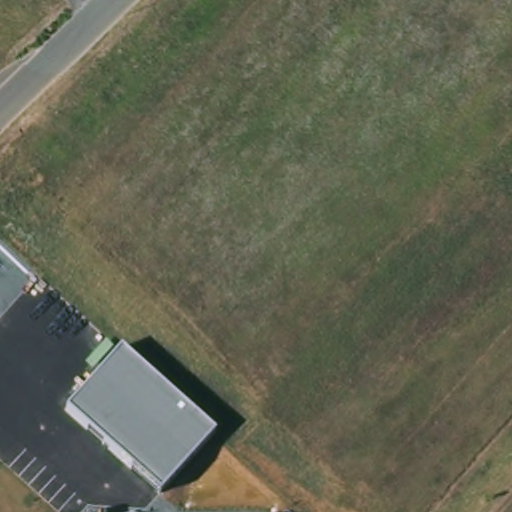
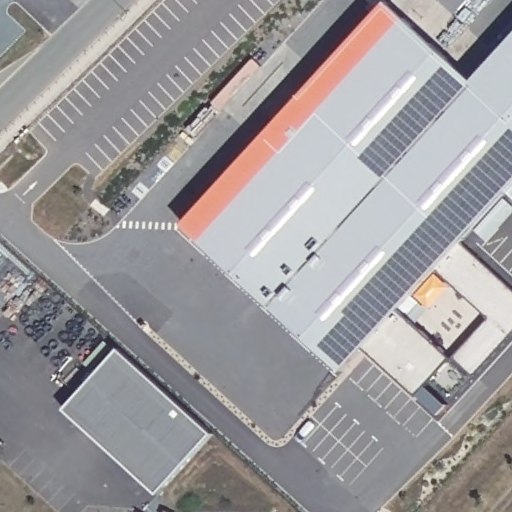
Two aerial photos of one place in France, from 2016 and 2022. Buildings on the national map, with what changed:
new [(184,225),(387,2),(512,114),(512,187),(400,310),(454,358),(472,377),(453,399),(448,404),(439,414),(418,395),(366,349),(344,372),(184,225)]
unchanged [(159,495),(67,410),(121,350),(214,434),(159,495)]

